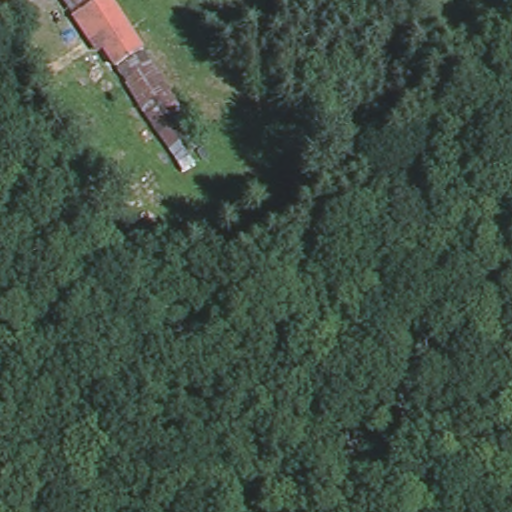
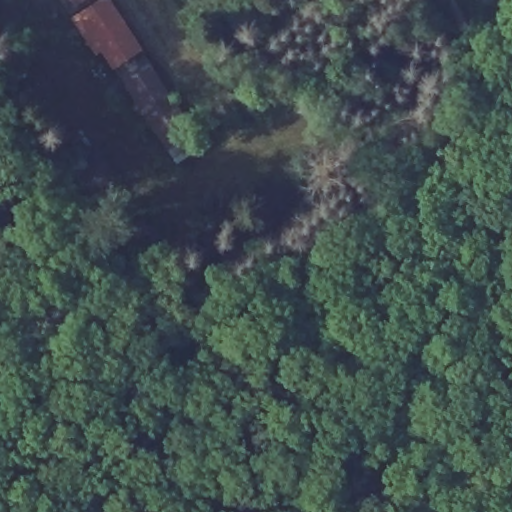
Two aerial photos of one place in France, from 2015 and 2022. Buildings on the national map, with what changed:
unchanged [(110,0),(144,53),(118,70),(104,47),(97,51),(64,0),(110,0)]
unchanged [(204,144),(180,159),(118,70),(144,53),(204,144)]
unchanged [(156,245),(126,256),(118,235),(148,224),(156,245)]

